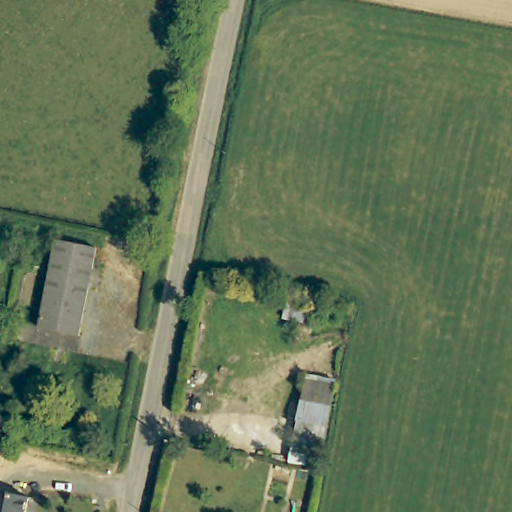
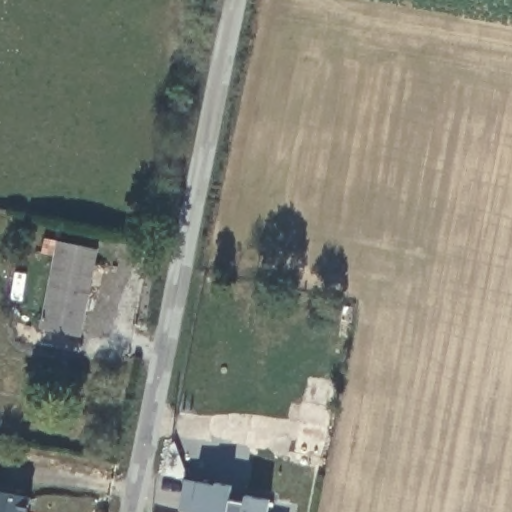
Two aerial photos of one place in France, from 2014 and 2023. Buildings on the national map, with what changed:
unchanged [(60,237),(97,246),(76,331),(40,323),(60,237)]
new [(172,512),(179,477),(230,486),(230,490),(270,497),(266,512),(172,512)]
unchanged [(22,496),(20,512),(0,512),(0,493),(22,496)]

